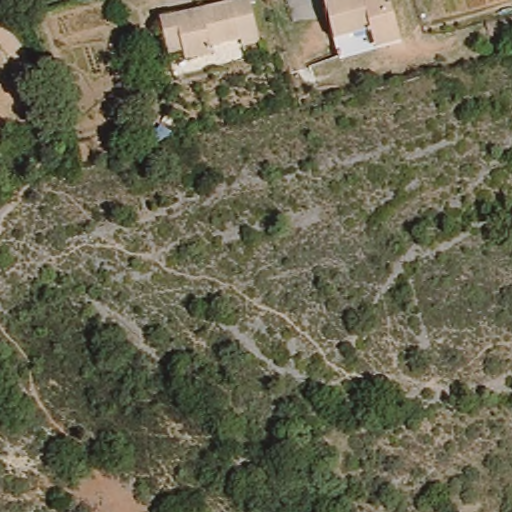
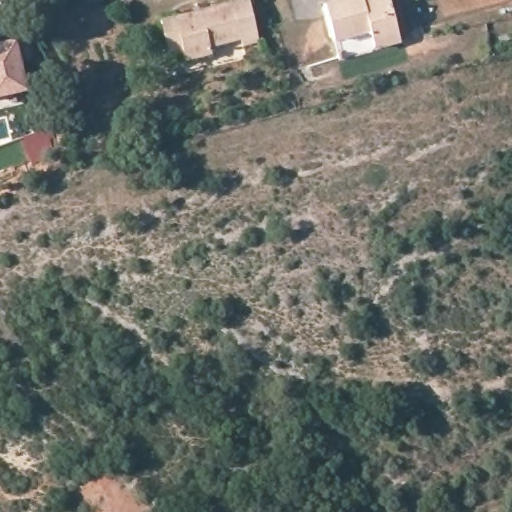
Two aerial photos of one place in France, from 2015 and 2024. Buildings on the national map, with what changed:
unchanged [(241,44),(240,38),(210,45),(211,51),(183,57),(181,47),(168,50),(161,16),(238,0),(246,0),(257,41),(241,44)]
unchanged [(374,44),(370,28),(335,35),(326,0),(392,0),(403,37),(374,44)]
new [(30,105),(0,112),(0,45),(15,41),(30,105)]

